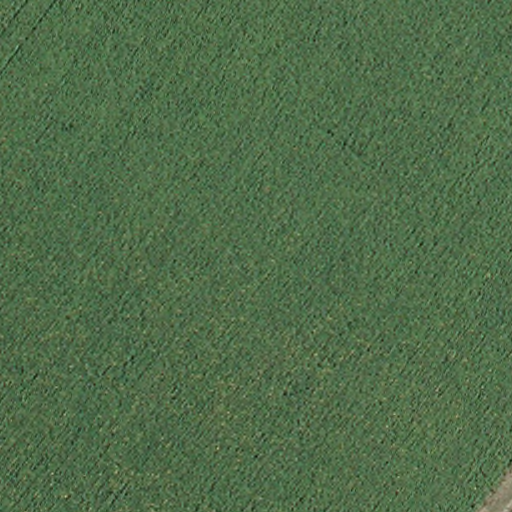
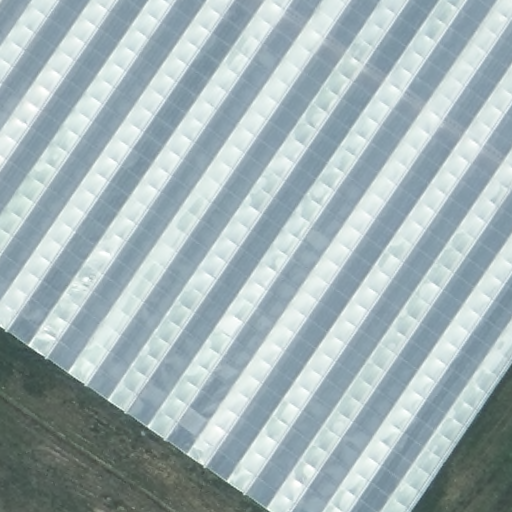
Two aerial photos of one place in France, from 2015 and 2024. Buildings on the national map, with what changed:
new [(0,325),(0,0),(512,0),(512,362),(410,512),(272,512),(0,325)]

